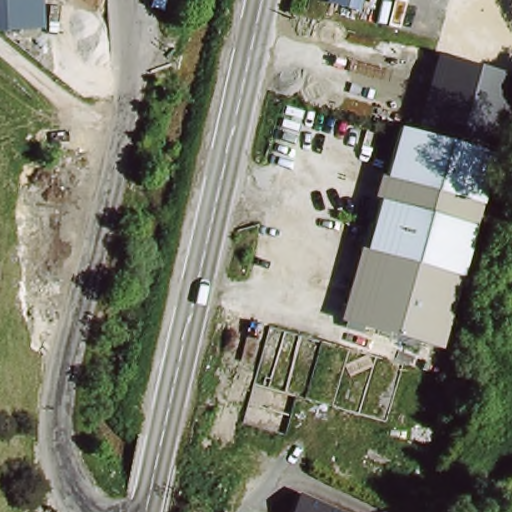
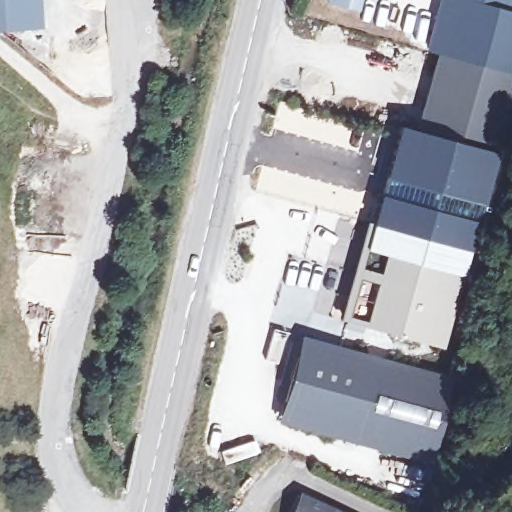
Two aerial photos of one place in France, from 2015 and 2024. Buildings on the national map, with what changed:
unchanged [(42,16),(2,19),(0,2),(0,0),(41,0),(42,16)]
unchanged [(357,9),(329,2),(329,0),(359,0),(357,9)]
unchanged [(507,73),(512,74),(512,90),(497,155),(427,136),(417,133),(440,54),(507,73)]
unchanged [(417,133),(427,136),(497,155),(443,349),(345,321),(399,128),(417,133)]
new [(302,336),(455,379),(432,464),(278,422),(302,336)]
unchanged [(298,498),(330,512),(289,512),(295,498),(298,498)]

